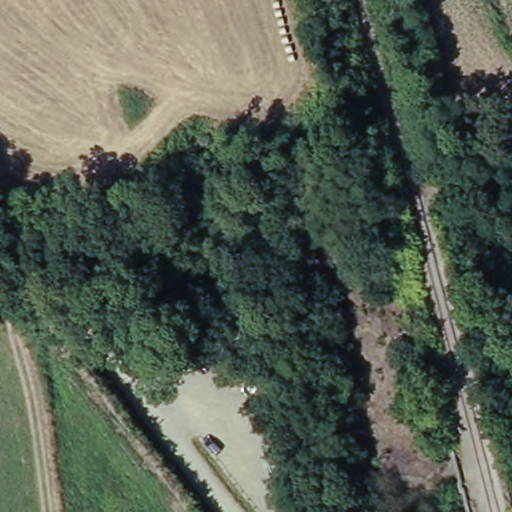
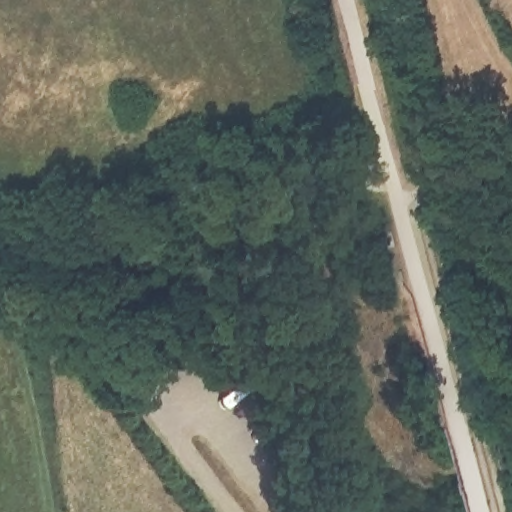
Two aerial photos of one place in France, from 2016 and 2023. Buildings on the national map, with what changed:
unchanged [(212,275),(207,296),(168,286),(174,265),(212,275)]

